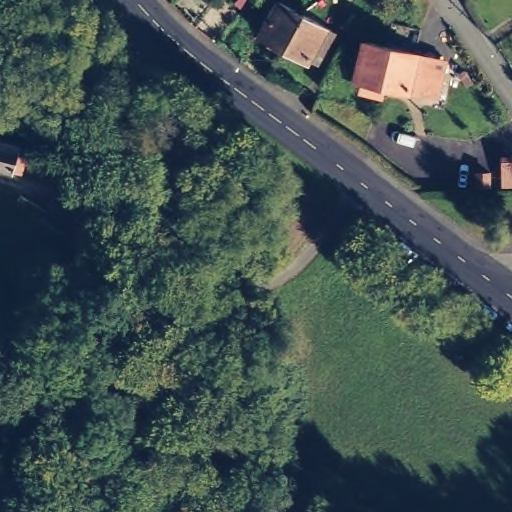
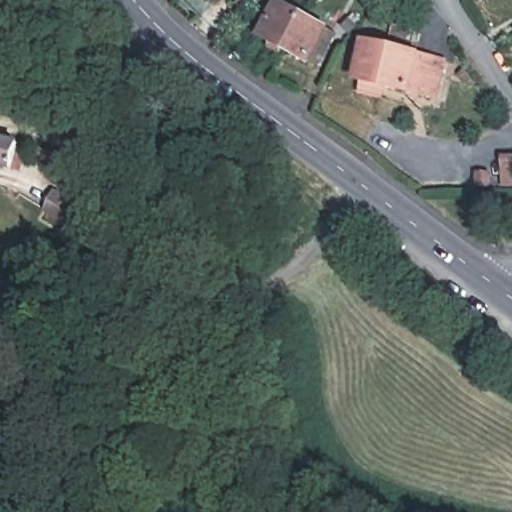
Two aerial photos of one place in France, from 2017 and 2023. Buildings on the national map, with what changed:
unchanged [(283,37),(281,42),(275,39),(277,34),(268,29),(274,17),(267,14),(275,0),(297,0),(310,7),(292,41),(283,37)]
unchanged [(310,7),(313,9),(340,24),(322,55),(315,52),(315,54),(292,41),(310,7)]
unchanged [(452,60),(443,104),(385,93),(383,103),(358,96),(360,83),(353,82),(362,38),(452,60)]
unchanged [(21,147),(29,150),(25,167),(0,161),(0,132),(23,138),(21,147)]
unchanged [(58,190),(88,208),(77,224),(48,207),(58,190)]

